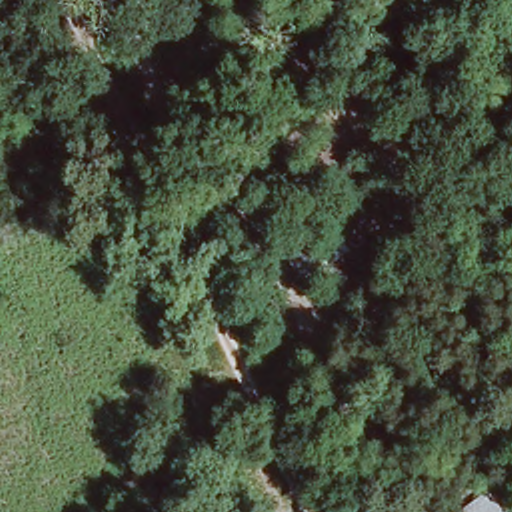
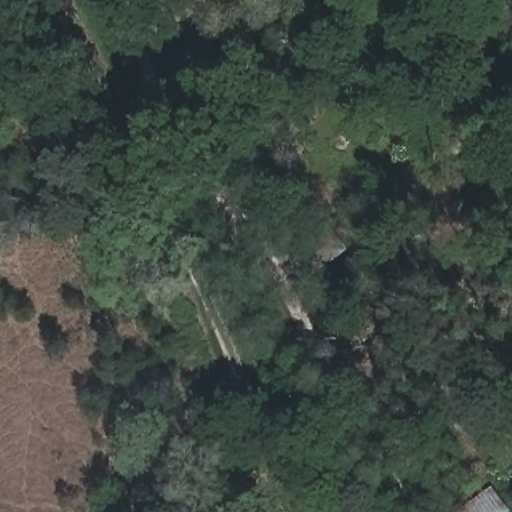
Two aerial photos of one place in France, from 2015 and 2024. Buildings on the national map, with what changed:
unchanged [(303,280),(282,256),(325,221),(347,246),(303,280)]
unchanged [(449,512),(491,485),(510,509),(505,512),(449,512)]

